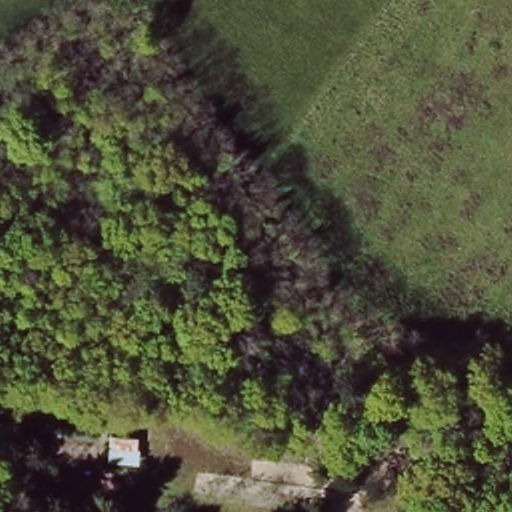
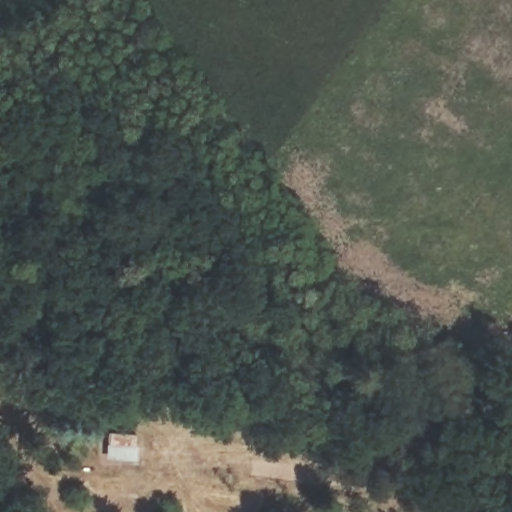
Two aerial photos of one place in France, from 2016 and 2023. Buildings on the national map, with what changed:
unchanged [(134,463),(107,463),(106,433),(135,433),(134,463)]

